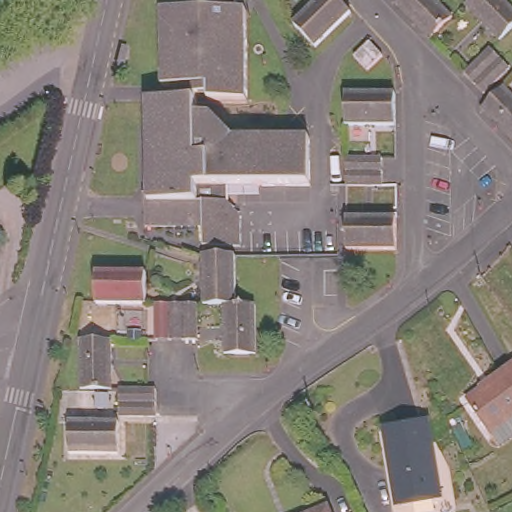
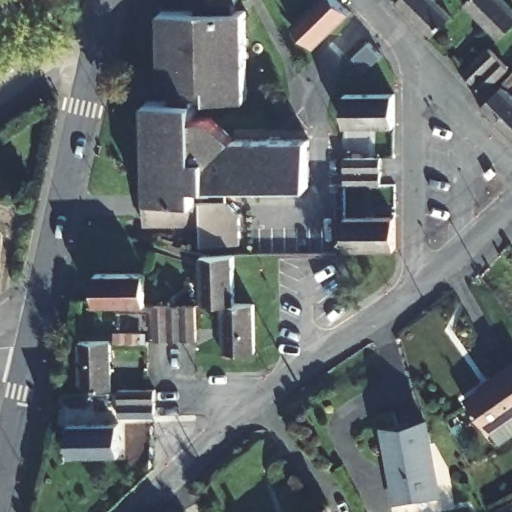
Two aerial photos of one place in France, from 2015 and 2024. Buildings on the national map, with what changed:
unchanged [(144,200),(148,200),(147,132),(147,107),(173,107),(163,91),(162,16),(171,16),(191,7),(191,0),(237,0),(237,6),(236,6),(236,16),(245,16),(245,105),(209,106),(209,102),(195,102),(195,122),(213,122),(227,144),(310,144),(310,191),(228,191),(228,209),(239,220),(240,250),(202,250),(202,231),(145,231),(144,200)]
unchanged [(293,24),(318,0),(338,0),(345,7),(350,12),(322,39),(315,47),(293,24)]
unchanged [(399,0),(435,0),(451,17),(430,39),(395,3),(399,0)]
unchanged [(512,9),(512,27),(499,40),(465,5),(469,0),(503,0),(512,9)]
unchanged [(382,56),(367,71),(354,57),(369,43),(382,56)]
unchanged [(509,68),(483,93),(473,84),(465,74),(490,49),(500,59),(502,62),(509,68)]
unchanged [(503,87),(512,96),(512,140),(481,109),(503,87)]
unchanged [(345,95),(395,95),(395,126),(345,126),(345,95)]
unchanged [(381,186),(345,186),(345,172),(345,159),(381,158),(381,172),(381,186)]
unchanged [(346,219),(395,218),(395,250),(346,250),(346,219)]
unchanged [(198,305),(198,255),(230,255),(230,261),(230,305),(218,305),(198,305)]
unchanged [(91,274),(141,274),(141,305),(91,305),(91,274)]
unchanged [(192,341),(191,341),(178,341),(165,341),(151,341),(151,305),(165,305),(178,305),(192,305),(192,341)]
unchanged [(230,305),(250,305),(250,354),(218,354),(218,305),(230,305)]
unchanged [(80,342),(112,341),(112,390),(81,391),(80,342)]
unchanged [(490,437),(468,403),(495,385),(492,381),(512,368),(512,421),(490,437)]
unchanged [(120,418),(120,404),(120,391),(148,390),(156,390),(156,404),(155,418),(120,418)]
unchanged [(382,429),(425,422),(437,495),(395,502),(382,429)]
unchanged [(70,425),(120,424),(120,456),(70,456),(70,425)]
unchanged [(329,512),(322,512),(328,510),(329,512)]

